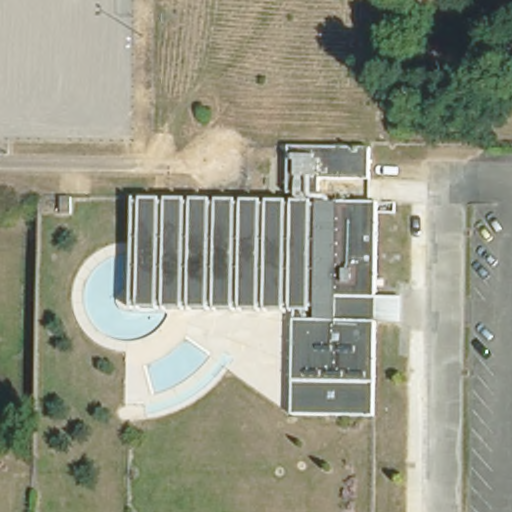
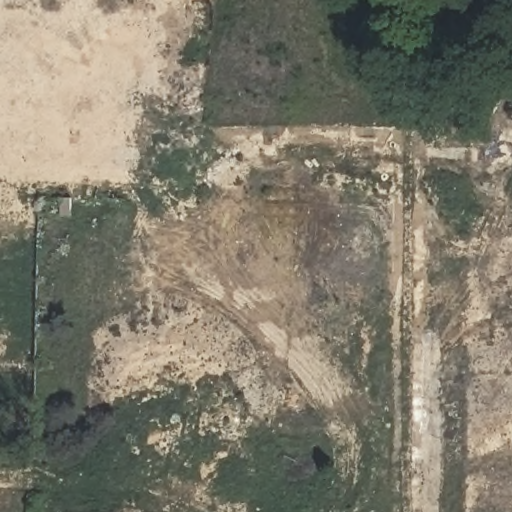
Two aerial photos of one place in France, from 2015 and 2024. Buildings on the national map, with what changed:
demolished [(295,205),(296,146),(378,147),(377,179),(321,178),(320,202),(382,204),(377,299),(387,300),(384,328),(377,327),(376,415),(292,412),(297,314),(125,308),(129,202),(295,205)]
unchanged [(57,198),(68,198),(67,215),(57,215),(57,198)]

